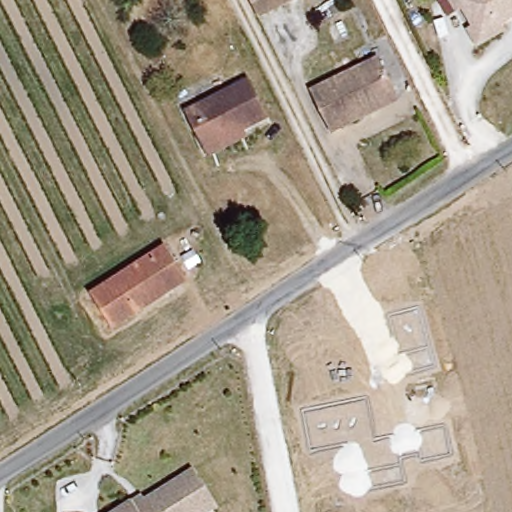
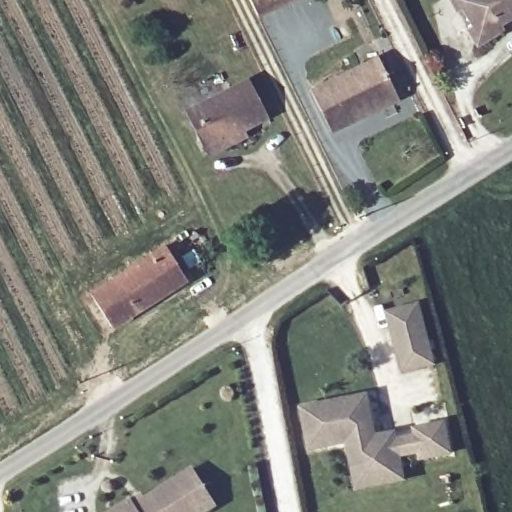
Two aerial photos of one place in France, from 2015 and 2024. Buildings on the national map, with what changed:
unchanged [(244,0),(292,0),(253,18),(244,0)]
unchanged [(503,25),(504,32),(479,46),(470,30),(474,27),(464,9),(459,12),(452,0),(512,0),(512,20),(503,25)]
unchanged [(354,117),(327,130),(307,88),(375,54),(389,86),(394,98),(354,117)]
unchanged [(262,117),(214,140),(214,148),(201,153),(181,109),(244,80),(262,117)]
unchanged [(183,286),(107,330),(87,294),(164,250),(183,286)]
new [(436,365),(401,374),(385,310),(419,302),(436,365)]
new [(369,393),(376,435),(397,432),(398,436),(412,434),(412,428),(445,422),(452,456),(419,463),(417,456),(403,459),(406,481),(354,491),(346,445),(307,453),(299,406),(369,393)]
unchanged [(142,498),(145,503),(193,472),(215,508),(210,512),(121,512),(133,504),(142,498)]

